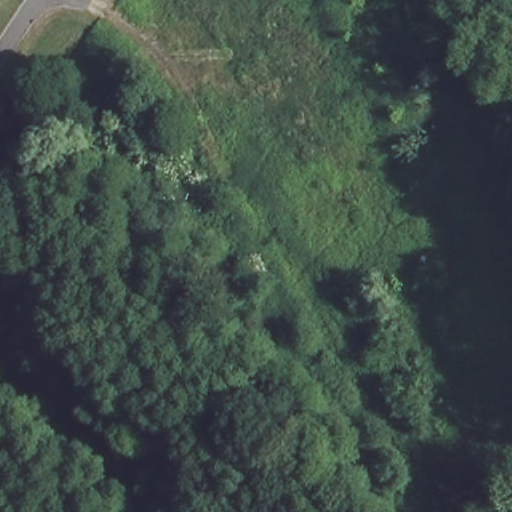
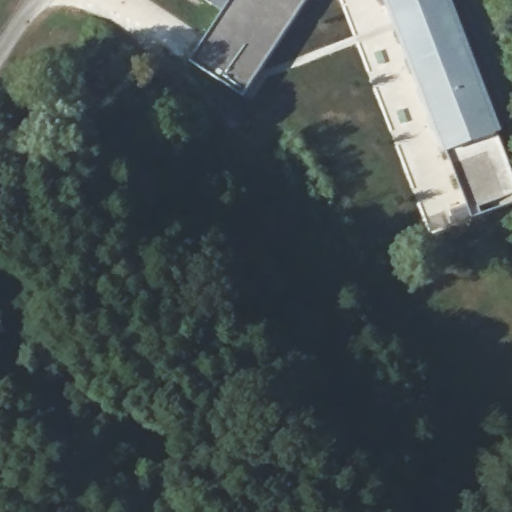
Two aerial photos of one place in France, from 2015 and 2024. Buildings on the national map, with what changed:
new [(230,0),(303,0),(242,95),(190,60),(230,0)]
new [(445,151),(441,152),(382,0),(450,0),(500,130),(494,133),(512,180),(512,204),(472,218),(445,151)]

